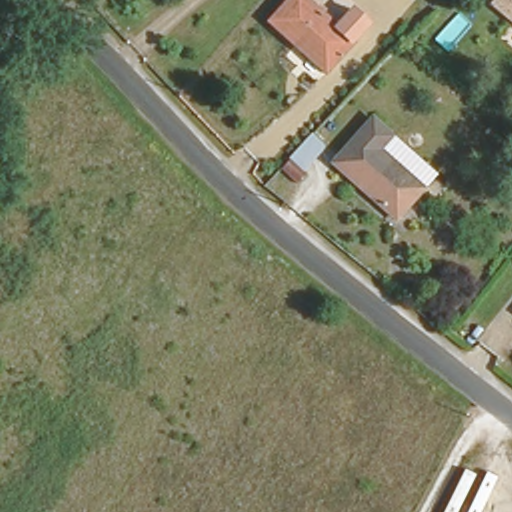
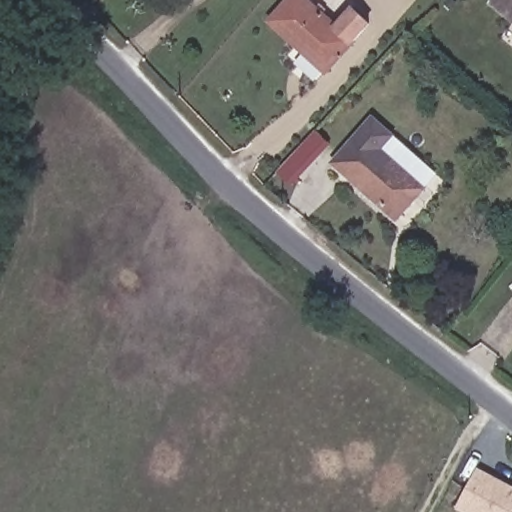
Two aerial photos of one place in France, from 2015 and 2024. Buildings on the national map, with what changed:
unchanged [(335,26),(351,8),(367,24),(325,72),(268,22),(289,0),(305,0),(335,26)]
unchanged [(491,0),(512,0),(512,19),(491,0)]
unchanged [(385,135),(374,149),(418,188),(390,219),(328,164),(366,119),(385,135)]
unchanged [(303,171),(305,174),(295,184),(280,166),(310,132),(325,145),(303,171)]
new [(462,512),(456,509),(478,467),(512,485),(512,512),(462,512)]

